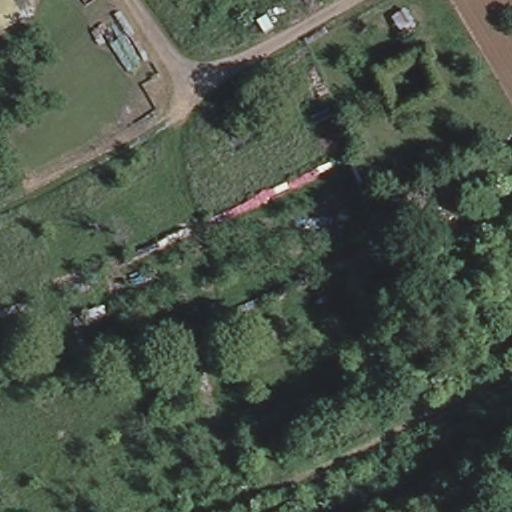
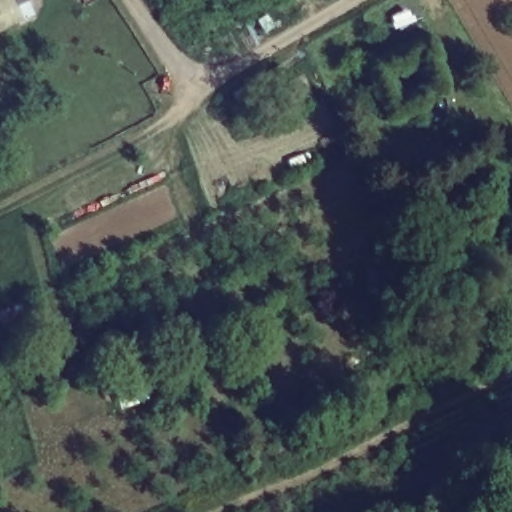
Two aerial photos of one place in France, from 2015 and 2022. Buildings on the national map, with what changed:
unchanged [(0,32),(0,0),(22,0),(31,18),(0,32)]
unchanged [(297,72),(307,96),(294,101),(281,80),(253,90),(264,110),(245,121),(229,88),(274,64),(297,72)]

